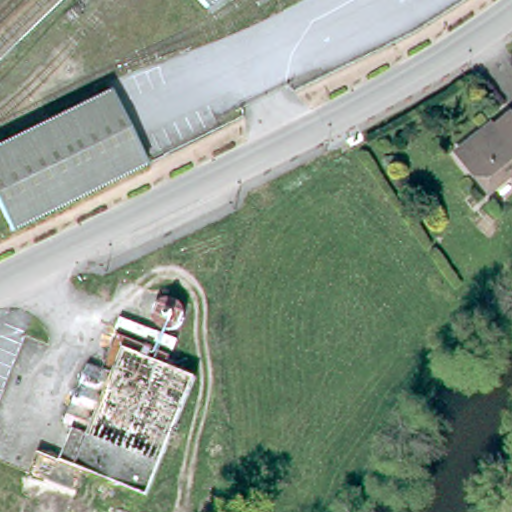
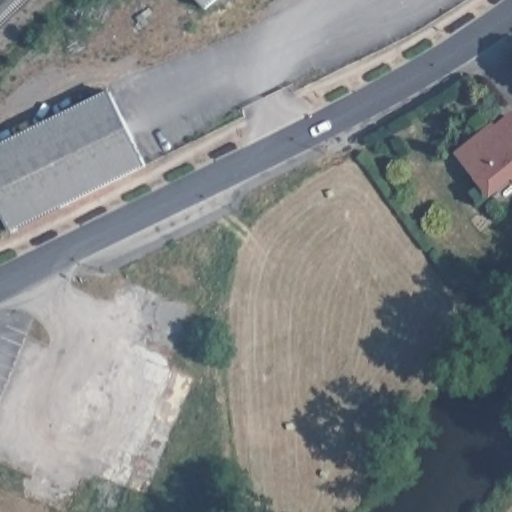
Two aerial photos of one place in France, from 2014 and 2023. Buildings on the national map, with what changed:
unchanged [(197,0),(218,0),(206,11),(197,0)]
unchanged [(0,148),(111,94),(146,166),(12,234),(0,209),(0,148)]
unchanged [(494,185),(462,146),(494,119),(497,122),(512,109),(512,170),(494,185)]
demolished [(162,301),(163,301),(164,301),(166,300),(168,300),(170,300),(171,300),(172,301),(173,301),(174,301),(175,302),(176,302),(177,302),(178,303),(179,304),(179,305),(181,306),(181,307),(182,308),(183,310),(183,311),(183,312),(184,313),(184,315),(184,316),(184,317),(183,318),(183,319),(183,321),(183,322),(182,323),(181,325),(181,326),(180,326),(179,327),(178,327),(178,328),(176,329),(176,330),(175,330),(174,331),(173,331),(171,331),(171,332),(169,332),(168,332),(166,332),(165,332),(164,331),(163,331),(162,331),(161,330),(160,330),(159,329),(158,328),(157,327),(156,327),(156,326),(155,325),(154,324),(154,323),(153,322),(153,321),(153,320),(153,319),(152,318),(152,317),(152,316),(152,315),(153,313),(153,312),(153,311),(153,310),(153,309),(154,308),(154,307),(155,307),(156,306),(156,305),(158,304),(158,303),(159,302),(160,302),(161,302),(162,301)]
demolished [(198,374),(149,495),(86,470),(78,489),(54,478),(74,425),(63,420),(89,359),(104,366),(118,332),(171,353),(168,362),(198,374)]

